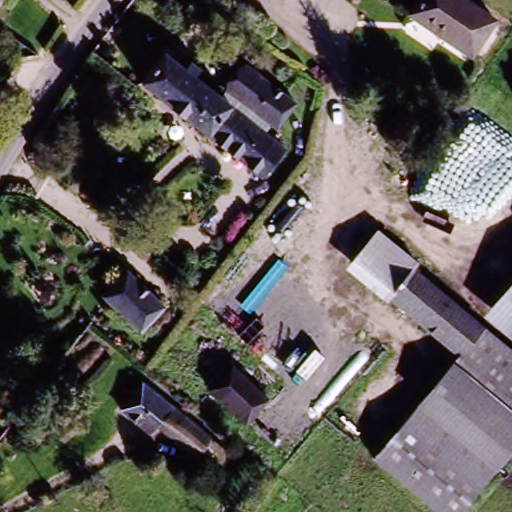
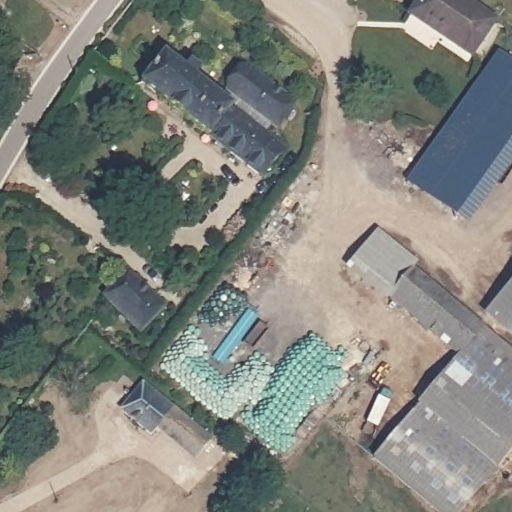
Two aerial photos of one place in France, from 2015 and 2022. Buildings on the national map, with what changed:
unchanged [(423,0),(455,0),(495,27),(472,62),(410,19),(423,0)]
unchanged [(247,66),(293,104),(275,126),(266,120),(259,129),(284,148),(260,178),(141,85),(165,54),(185,69),(192,60),(202,68),(196,77),(220,99),(247,66)]
new [(512,63),(512,142),(457,221),(407,187),(500,55),(512,63)]
unchanged [(387,300),(383,306),(346,276),(379,237),(415,267),(411,272),(482,328),(457,358),(387,300)]
unchanged [(130,272),(162,304),(140,328),(106,295),(130,272)]
unchanged [(512,289),(512,337),(489,317),(512,289)]
unchanged [(512,417),(450,366),(457,358),(482,328),(512,352),(512,417)]
unchanged [(512,453),(497,471),(419,406),(450,366),(512,417),(512,453)]
unchanged [(266,403),(245,425),(210,391),(232,369),(266,403)]
unchanged [(153,433),(122,407),(145,381),(212,438),(204,448),(209,452),(202,461),(160,425),(153,433)]
unchanged [(465,512),(436,512),(374,462),(419,406),(497,471),(465,512)]

